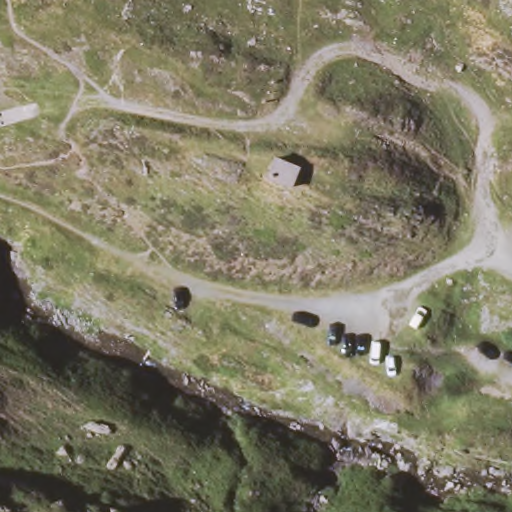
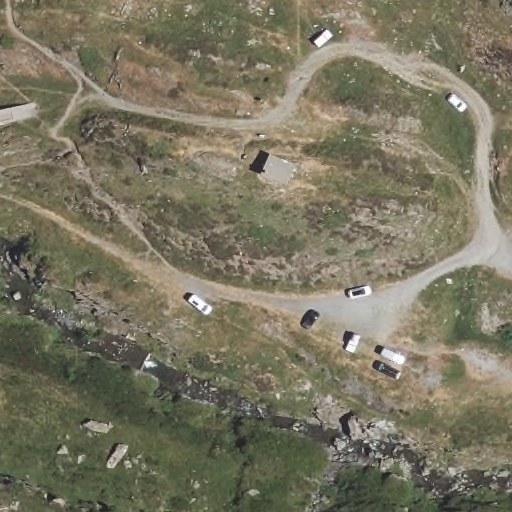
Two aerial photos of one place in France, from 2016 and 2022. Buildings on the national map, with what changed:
unchanged [(297,160),(289,184),(258,171),(270,148),(297,160)]

